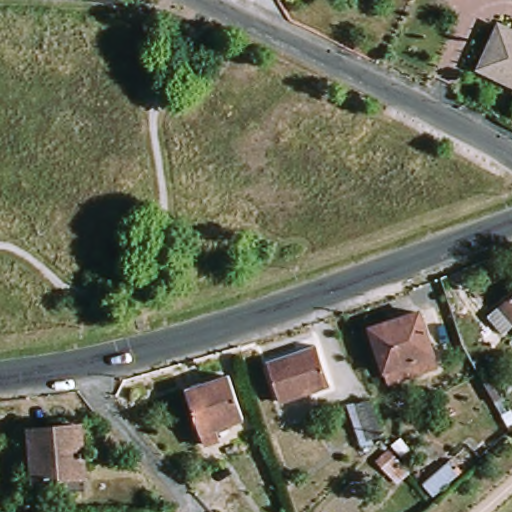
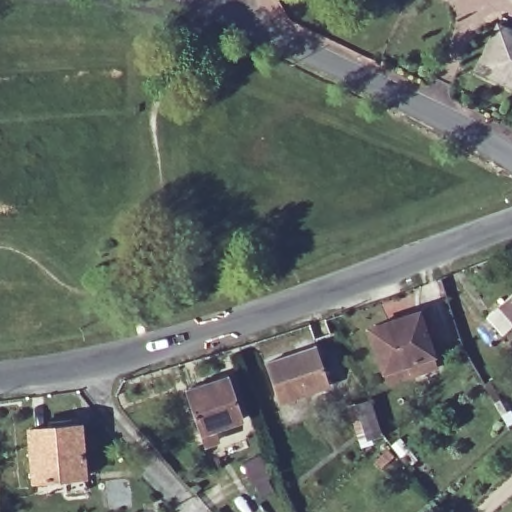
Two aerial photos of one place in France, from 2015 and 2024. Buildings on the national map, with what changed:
unchanged [(501,29),(512,34),(512,78),(484,64),(501,29)]
unchanged [(394,146),(394,155),(386,155),(385,146),(394,146)]
unchanged [(493,319),(512,302),(512,334),(508,337),(493,319)]
unchanged [(373,330),(421,314),(436,355),(440,367),(391,384),(386,372),(373,330)]
unchanged [(284,403),(272,367),(320,351),(332,387),(284,403)]
unchanged [(247,421),(206,436),(191,396),(232,380),(247,421)]
unchanged [(498,401),(488,384),(495,380),(505,397),(498,401)]
unchanged [(38,482),(34,433),(82,429),(87,478),(38,482)]

